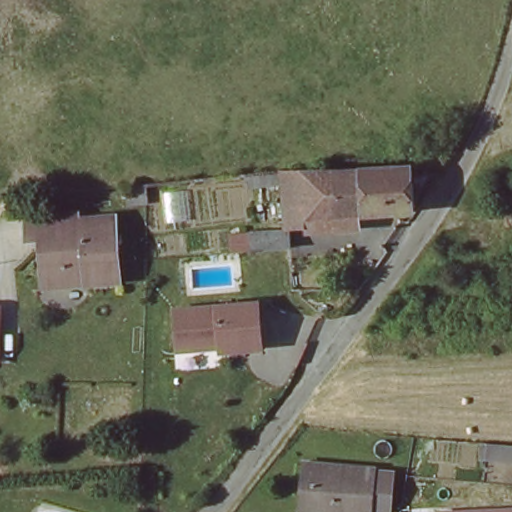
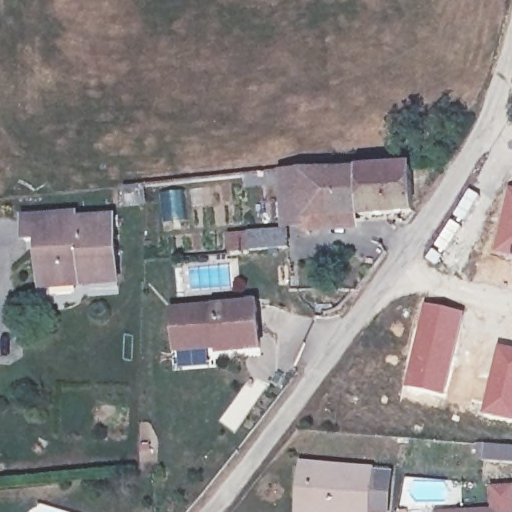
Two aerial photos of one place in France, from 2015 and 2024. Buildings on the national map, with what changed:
unchanged [(415,211),(305,222),(305,230),(287,231),(283,171),(338,167),(410,162),(415,211)]
new [(512,186),(512,257),(493,253),(508,185),(512,186)]
unchanged [(141,189),(141,207),(120,210),(120,191),(141,189)]
unchanged [(44,272),(43,252),(46,251),(47,242),(29,244),(29,217),(77,213),(77,221),(113,217),(118,268),(120,282),(87,285),(54,288),(45,288),(44,272)]
unchanged [(287,235),(290,252),(253,257),(250,238),(287,235)]
new [(423,303),(464,312),(445,398),(405,390),(423,303)]
unchanged [(250,305),(254,350),(214,353),(213,343),(170,347),(167,312),(250,305)]
unchanged [(512,451),(512,476),(506,477),(492,477),(492,452),(512,451)]
unchanged [(301,471),(371,472),(368,512),(299,512),(301,471)]
unchanged [(511,509),(512,512),(460,512),(511,509)]

